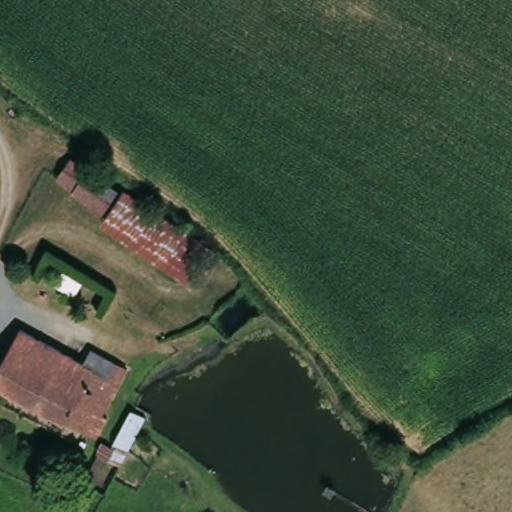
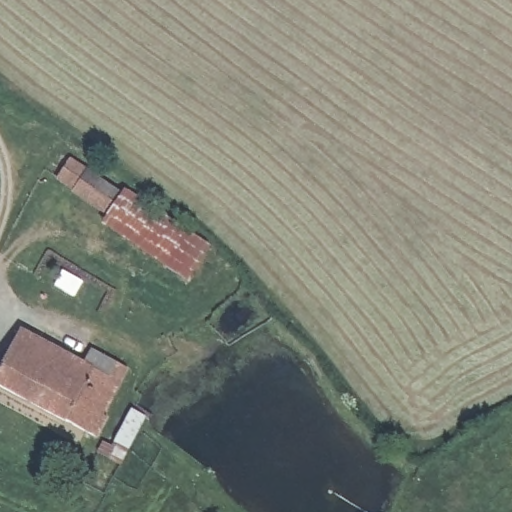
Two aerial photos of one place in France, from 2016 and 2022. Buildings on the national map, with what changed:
unchanged [(130,186),(216,242),(192,277),(105,222),(109,216),(61,180),(75,156),(130,186)]
unchanged [(24,326),(88,357),(97,345),(132,365),(111,409),(115,413),(104,434),(0,380),(0,375),(24,326)]

